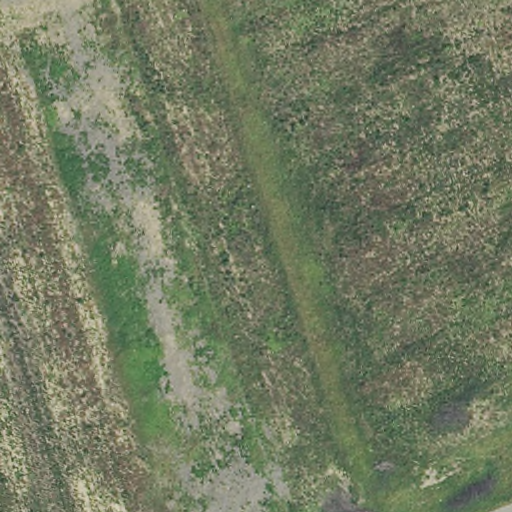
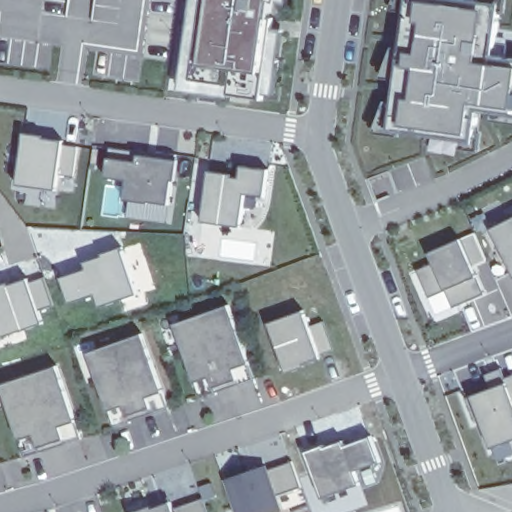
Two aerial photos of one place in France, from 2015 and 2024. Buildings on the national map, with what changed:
new [(191,0),(291,0),(289,8),(279,6),(276,28),(286,29),(276,103),(178,90),(191,0)]
new [(391,79),(381,79),(393,45),(398,11),(392,10),(395,0),(505,0),(498,46),(512,48),(512,125),(483,121),(479,150),(373,133),(388,97),(391,79)]
new [(505,0),(512,0),(512,48),(498,46),(505,0)]
new [(73,147),(70,179),(55,177),(55,195),(13,187),(15,136),(73,147)]
new [(171,206),(151,203),(151,204),(126,201),(128,182),(107,179),(111,149),(140,153),(139,155),(156,158),(157,153),(178,156),(171,206)]
new [(140,150),(157,153),(156,158),(139,155),(140,150)]
new [(178,161),(181,161),(178,183),(174,182),(178,161)]
new [(224,178),(223,182),(235,184),(236,171),(259,173),(258,200),(237,196),(234,228),(198,227),(202,176),(224,178)]
new [(512,220),(512,269),(492,229),(512,220)]
new [(462,239),(477,232),(488,260),(474,265),(479,277),(487,294),(454,308),(446,289),(429,297),(416,269),(433,263),(429,253),(462,239)]
new [(95,261),(96,258),(114,253),(130,299),(93,312),(89,298),(63,306),(58,283),(82,274),(80,268),(95,261)]
new [(25,282),(38,328),(0,341),(0,291),(25,282)]
new [(256,382),(203,401),(174,323),(228,305),(256,382)]
new [(303,328),(318,323),(330,357),(282,377),(262,328),(294,315),(303,328)]
new [(170,410),(116,429),(88,353),(141,334),(170,410)]
new [(83,419),(66,424),(71,439),(44,447),(41,433),(25,438),(8,383),(62,364),(83,419)]
new [(468,398),(512,381),(512,441),(484,452),(468,398)]
new [(336,442),(339,449),(364,439),(373,464),(349,473),(354,488),(316,501),(301,458),(336,442)]
new [(289,462),(297,489),(274,497),(278,512),(231,512),(222,486),(289,462)]
new [(153,507),(151,505),(171,498),(173,503),(175,509),(205,499),(209,512),(138,512),(153,507)]

